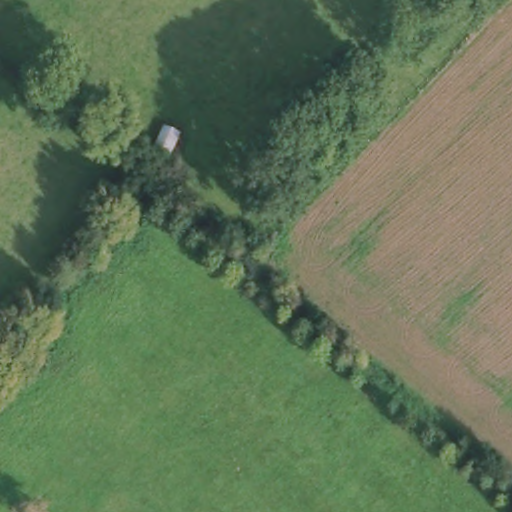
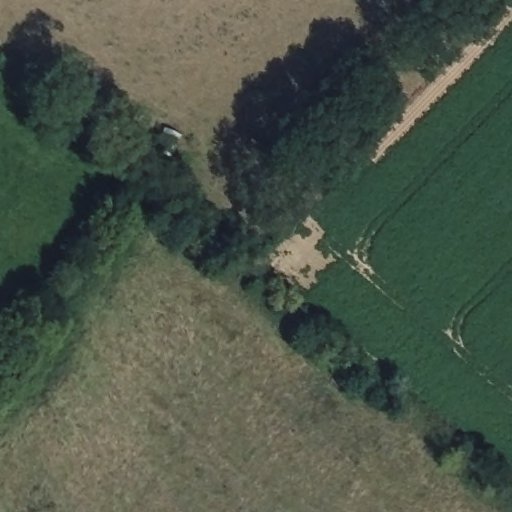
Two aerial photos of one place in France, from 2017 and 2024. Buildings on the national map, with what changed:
unchanged [(163,129),(176,137),(163,156),(150,147),(163,129)]

